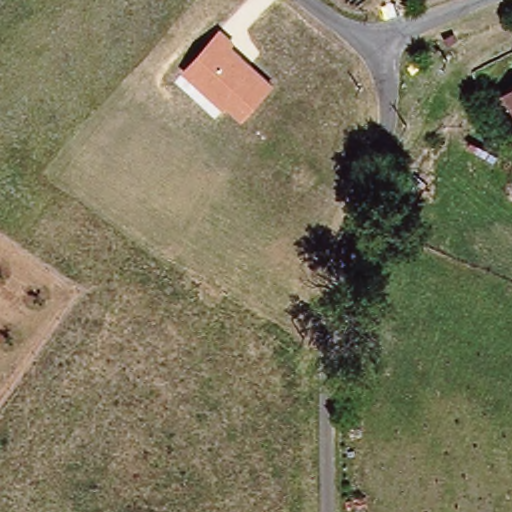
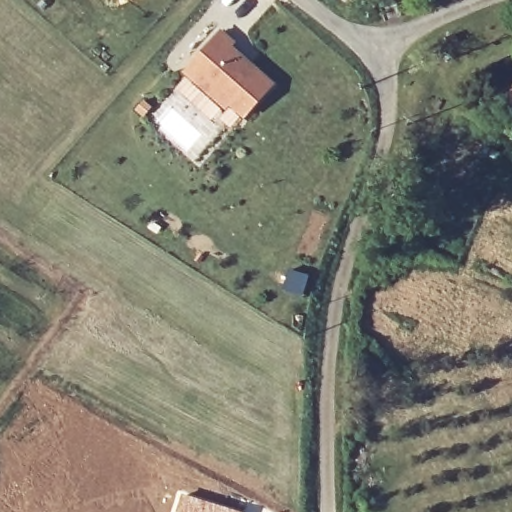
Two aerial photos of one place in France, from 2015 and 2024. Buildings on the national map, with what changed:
new [(120,0),(129,0),(121,3),(120,0)]
unchanged [(236,41),(231,47),(274,84),(241,124),(181,73),(220,29),(236,41)]
unchanged [(512,89),(512,116),(500,98),(512,89)]
new [(181,494),(237,512),(175,512),(181,494)]

